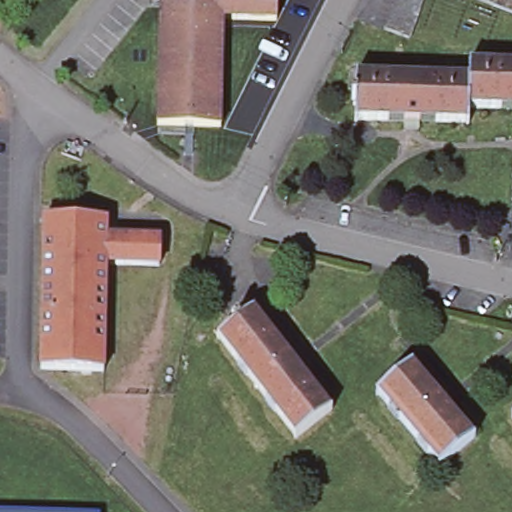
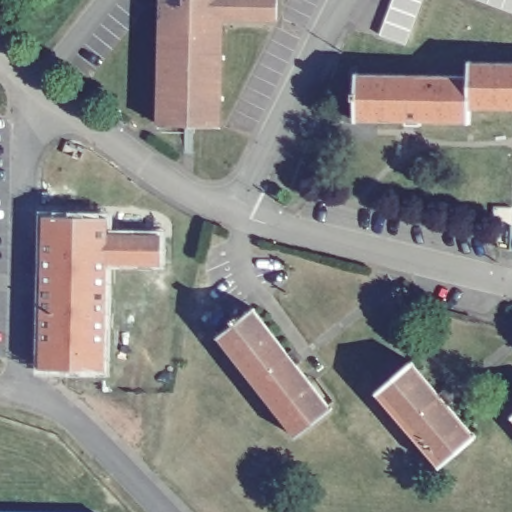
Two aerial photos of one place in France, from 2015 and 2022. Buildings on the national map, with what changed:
unchanged [(217,127),(152,124),(155,0),(272,0),(272,21),(228,19),(228,14),(218,13),(217,127)]
unchanged [(412,36),(385,27),(394,0),(424,0),(412,36)]
unchanged [(512,9),(488,0),(512,0),(512,9)]
unchanged [(466,131),(352,128),(352,107),(348,107),(348,101),(353,101),(353,83),(467,84),(467,70),(512,71),(512,118),(467,117),(466,131)]
unchanged [(40,211),(102,213),(102,231),(102,258),(100,368),(40,364),(38,364),(38,359),(40,211)]
unchanged [(156,233),(155,261),(102,258),(102,231),(156,233)]
unchanged [(292,435),(213,336),(231,323),(228,318),(233,314),(237,318),(250,309),(283,351),(288,348),(297,359),(292,363),(327,408),(292,435)]
unchanged [(435,461),(372,388),(408,358),(435,390),(441,386),(450,396),(445,400),(472,432),(435,461)]
unchanged [(512,413),(512,420),(508,416),(512,413)]
unchanged [(94,512),(0,512),(0,508),(94,512)]

